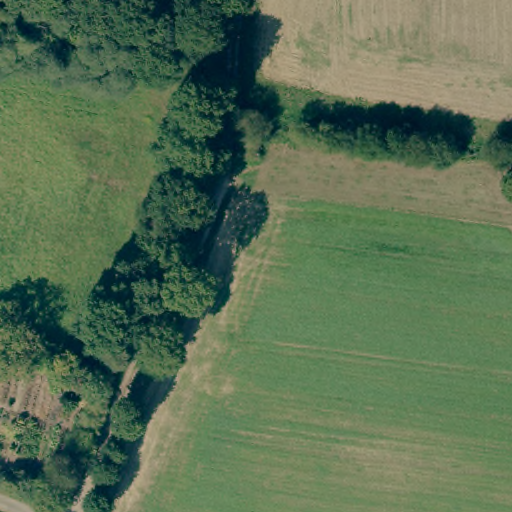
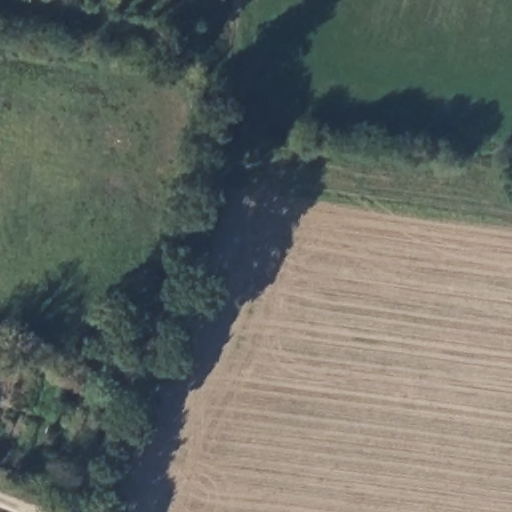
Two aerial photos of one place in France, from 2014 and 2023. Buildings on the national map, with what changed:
[]

